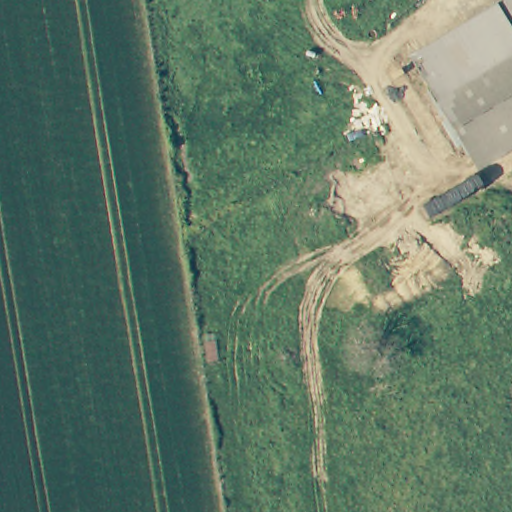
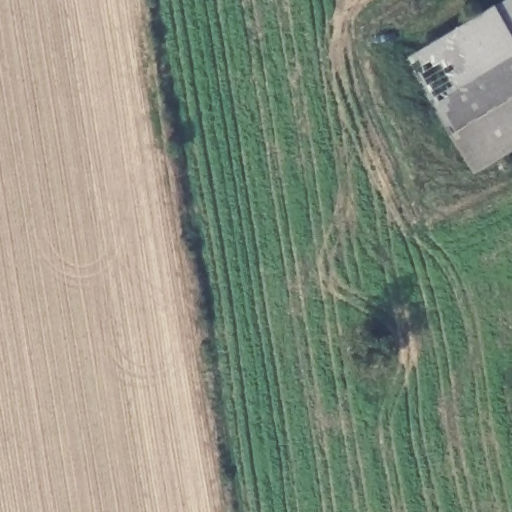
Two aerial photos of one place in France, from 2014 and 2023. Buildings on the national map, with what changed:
unchanged [(475,172),(412,62),(512,0),(512,148),(475,172)]

